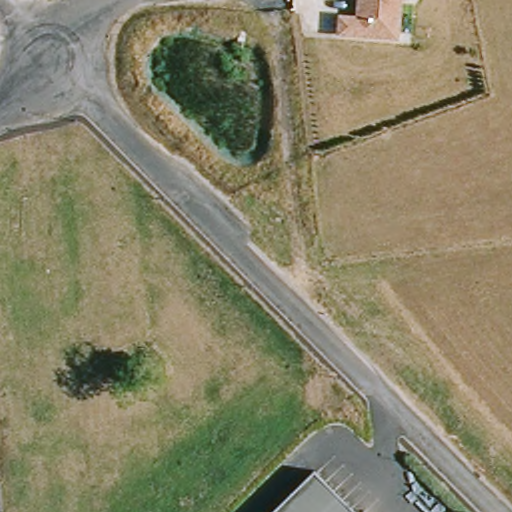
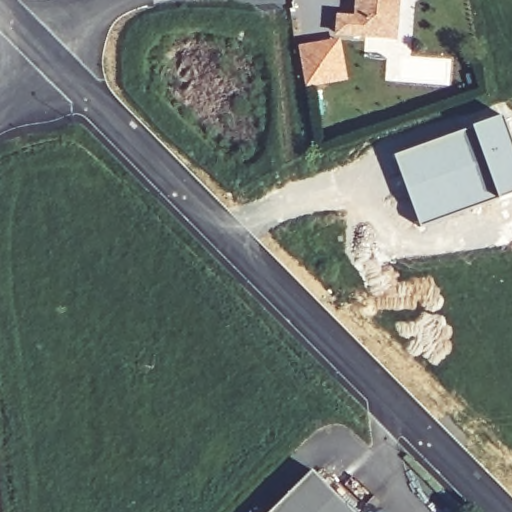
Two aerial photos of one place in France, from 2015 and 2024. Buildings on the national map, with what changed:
unchanged [(335,38),(337,14),(357,16),(358,0),(401,0),(399,43),(335,38)]
new [(502,115),(512,141),(512,194),(420,226),(394,155),(502,115)]
unchanged [(314,468),(357,512),(269,512),(314,468)]

